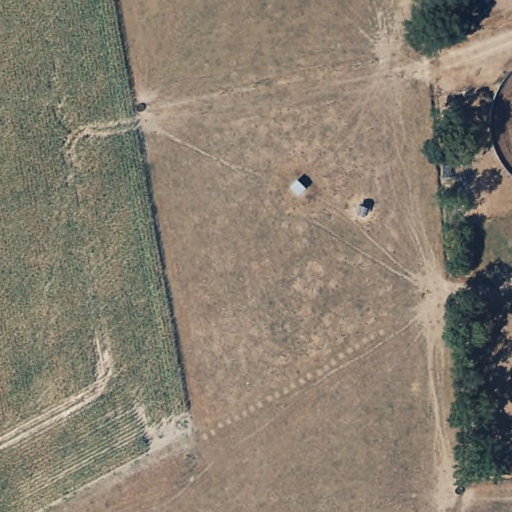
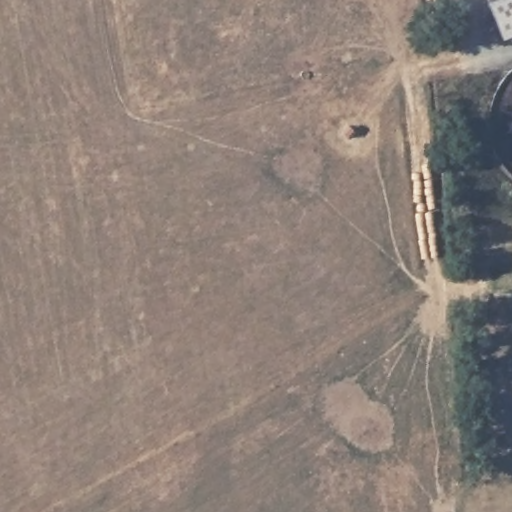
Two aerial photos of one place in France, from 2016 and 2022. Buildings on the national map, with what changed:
new [(488,0),(512,0),(512,35),(503,38),(488,0)]

